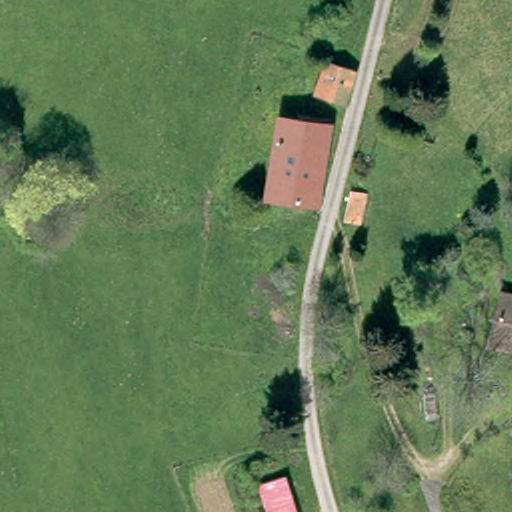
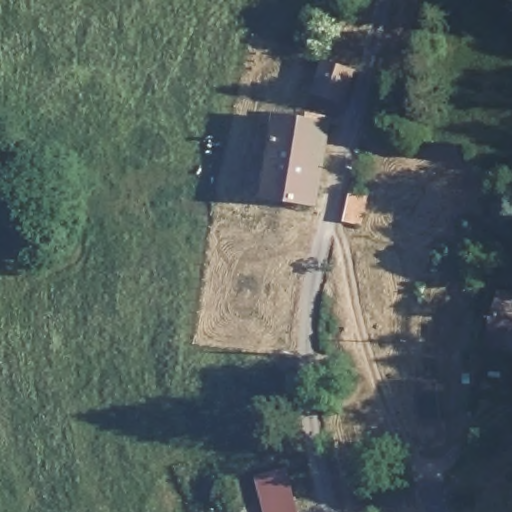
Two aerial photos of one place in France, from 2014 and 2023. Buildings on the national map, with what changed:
unchanged [(310,94),(318,57),(346,65),(339,101),(310,94)]
unchanged [(310,206),(260,200),(274,116),(322,126),(310,206)]
unchanged [(500,296),(512,298),(512,350),(492,347),(500,296)]

